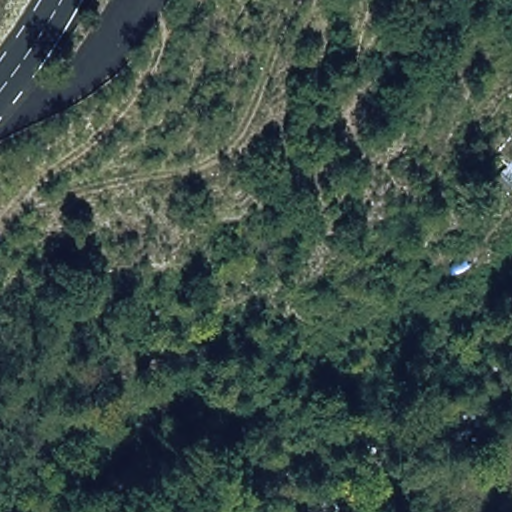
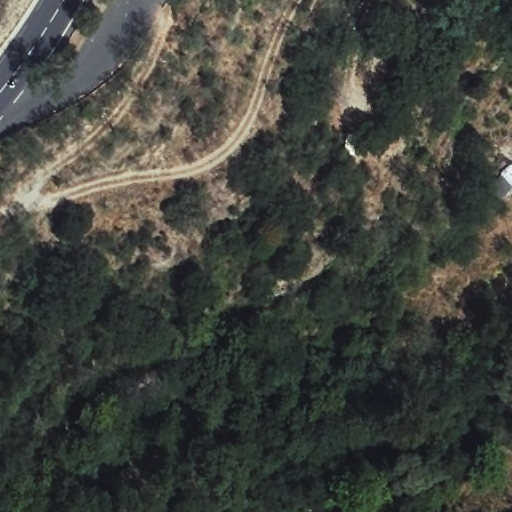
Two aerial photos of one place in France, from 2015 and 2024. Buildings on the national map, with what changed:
unchanged [(481,194),(506,167),(492,154),(510,135),(512,137),(512,187),(495,206),(481,194)]

